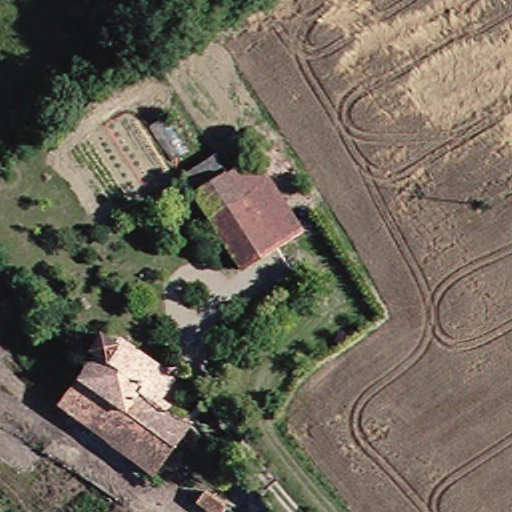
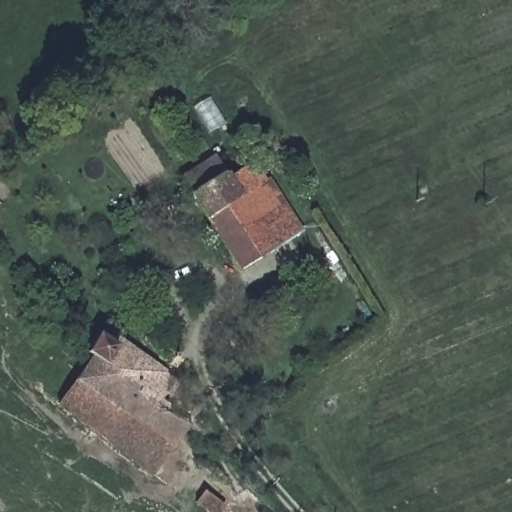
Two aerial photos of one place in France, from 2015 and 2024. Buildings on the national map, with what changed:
unchanged [(242,156),(294,229),(269,249),(237,198),(220,174),(242,156)]
unchanged [(237,198),(205,225),(186,200),(220,174),(237,198)]
unchanged [(237,198),(269,249),(238,273),(205,225),(237,198)]
unchanged [(195,462),(174,440),(168,448),(146,476),(35,397),(54,367),(65,371),(76,355),(71,351),(83,336),(98,347),(105,339),(151,374),(138,398),(166,415),(204,453),(195,462)]
unchanged [(222,512),(207,512),(194,503),(202,493),(225,508),(222,512)]

